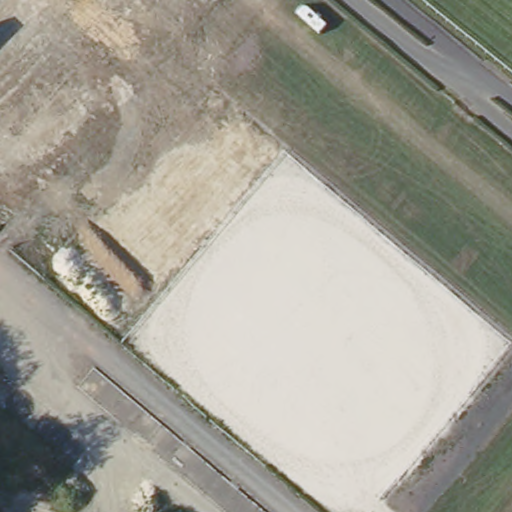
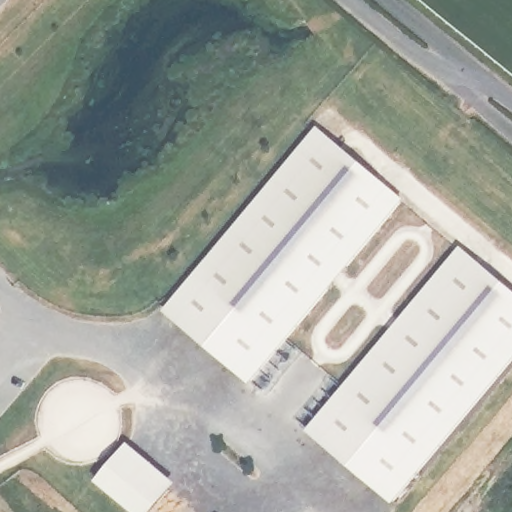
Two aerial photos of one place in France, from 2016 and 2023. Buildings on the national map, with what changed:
new [(408,197),(254,382),(169,312),(324,126),(408,197)]
new [(512,281),(512,359),(396,498),(310,428),(466,242),(512,281)]
new [(133,440),(183,482),(157,512),(144,512),(102,478),(133,440)]

